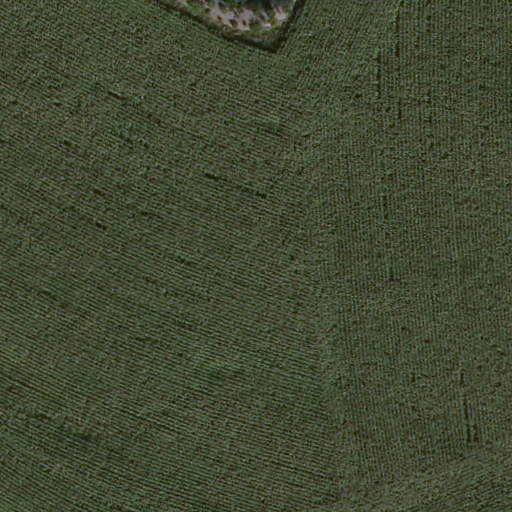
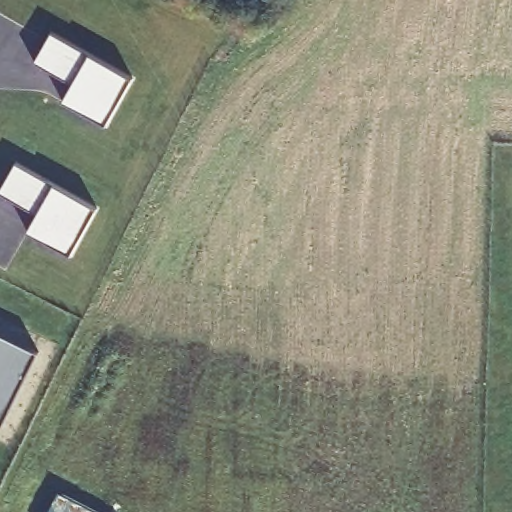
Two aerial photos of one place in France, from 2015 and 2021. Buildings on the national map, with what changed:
new [(50,31),(131,78),(105,125),(61,101),(70,84),(32,62),(50,31)]
new [(96,208),(70,256),(26,231),(36,214),(0,194),(0,188),(15,162),(96,208)]
unchanged [(2,425),(0,424),(0,333),(37,352),(2,425)]

